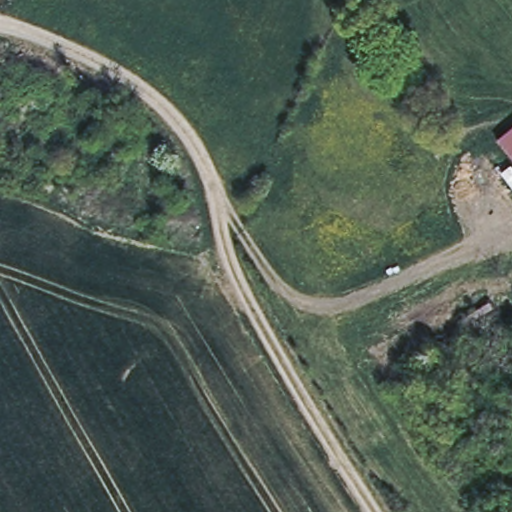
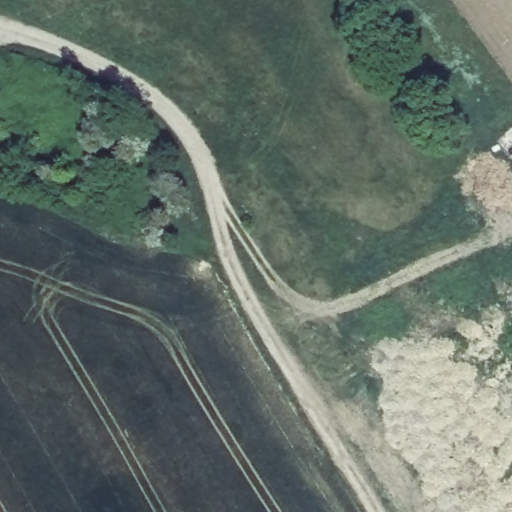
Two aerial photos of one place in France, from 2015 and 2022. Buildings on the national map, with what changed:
unchanged [(500,146),(497,148),(491,141),(512,123),(512,160),(500,146)]

